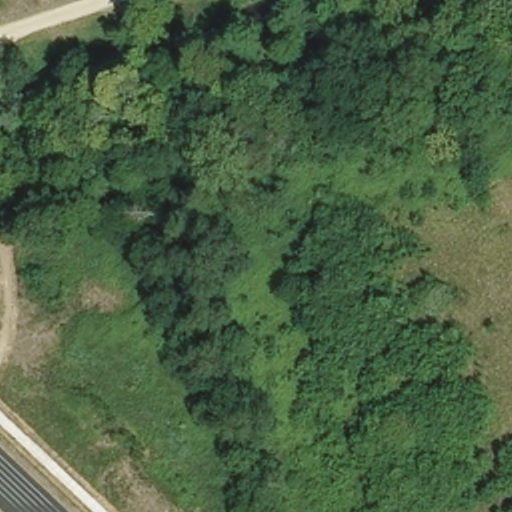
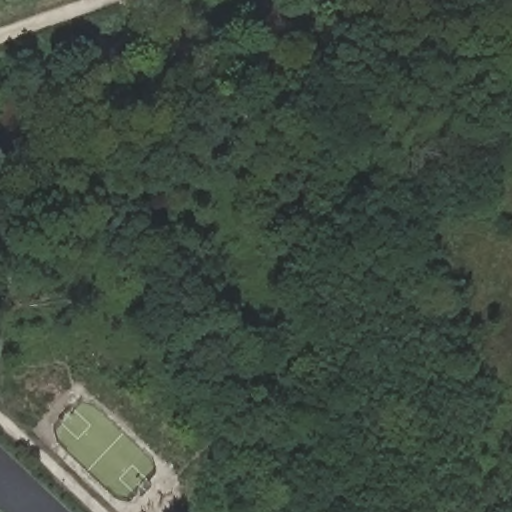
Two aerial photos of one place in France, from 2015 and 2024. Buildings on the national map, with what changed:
[]

